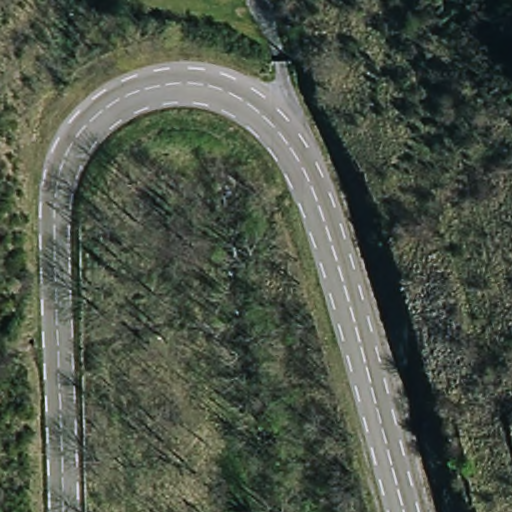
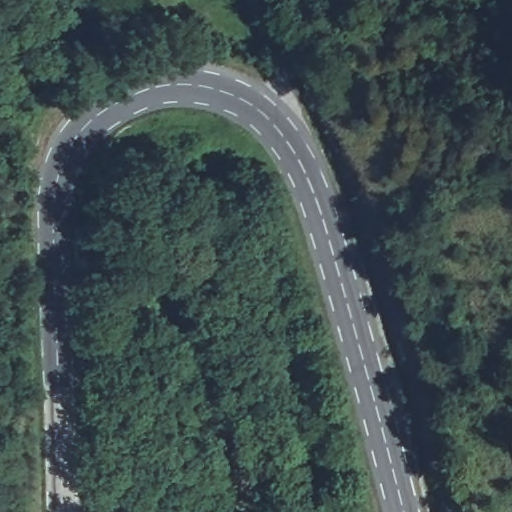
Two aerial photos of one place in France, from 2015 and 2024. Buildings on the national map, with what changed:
[]

